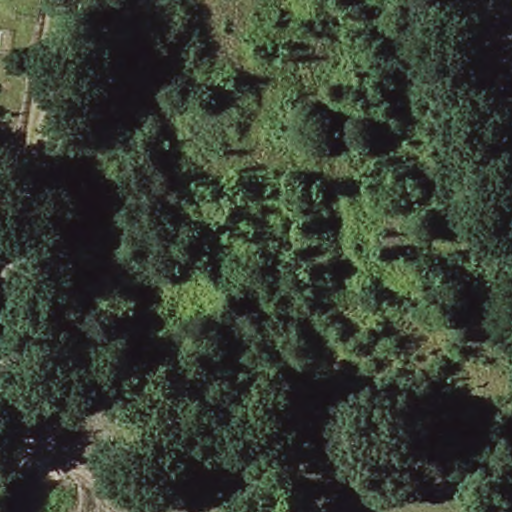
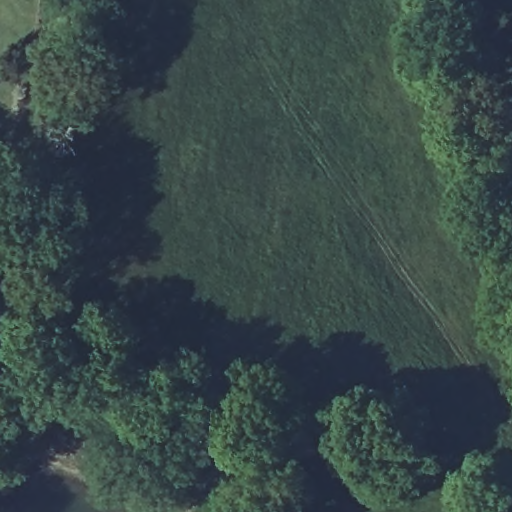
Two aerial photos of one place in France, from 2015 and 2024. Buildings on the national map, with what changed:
[]

